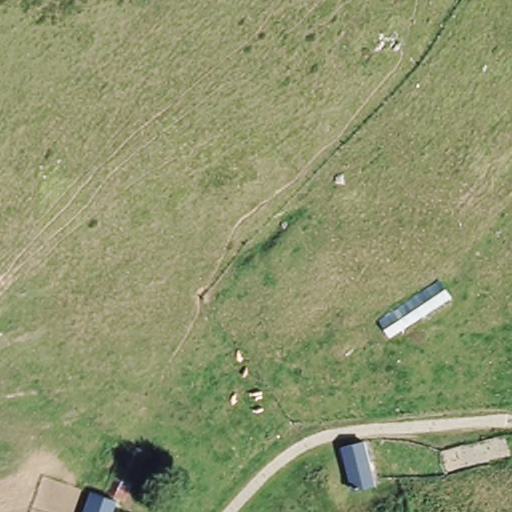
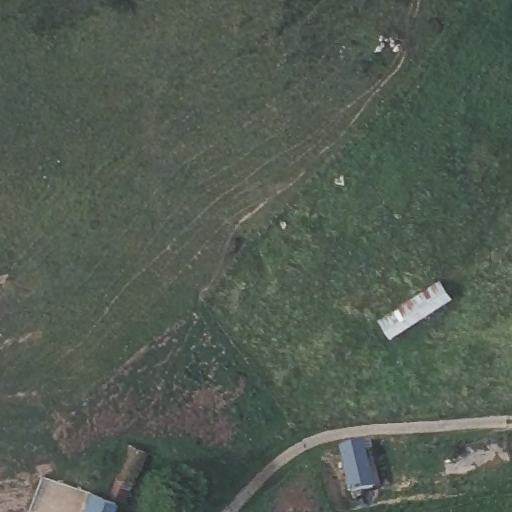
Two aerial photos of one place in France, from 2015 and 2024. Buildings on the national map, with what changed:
unchanged [(396,340),(385,323),(435,291),(444,303),(396,340)]
unchanged [(131,501),(113,495),(127,447),(145,452),(131,501)]
unchanged [(378,488),(350,493),(340,452),(368,447),(378,488)]
unchanged [(113,512),(86,512),(91,496),(116,505),(113,512)]

